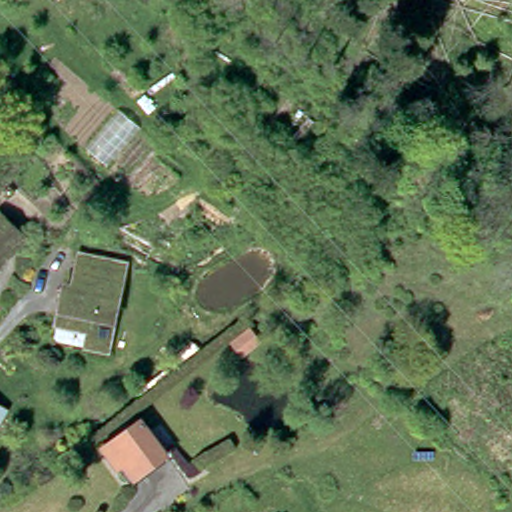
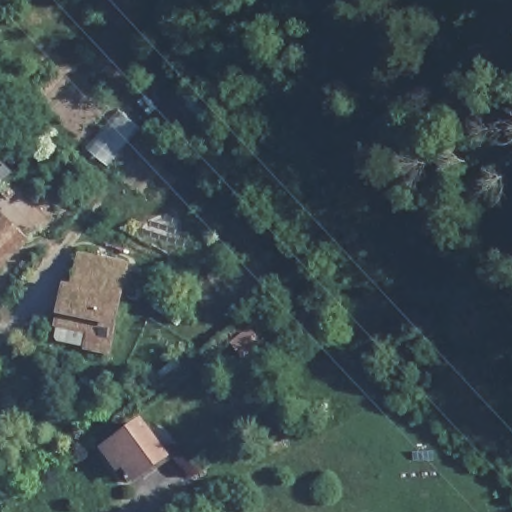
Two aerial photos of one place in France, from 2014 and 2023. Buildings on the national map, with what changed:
unchanged [(10,242),(0,252),(0,232),(10,242)]
unchanged [(65,318),(66,311),(73,281),(80,282),(83,263),(86,249),(127,258),(131,259),(128,273),(113,344),(93,339),(61,332),(65,318)]
unchanged [(110,456),(118,447),(143,427),(169,459),(145,478),(141,475),(131,483),(110,456)]

